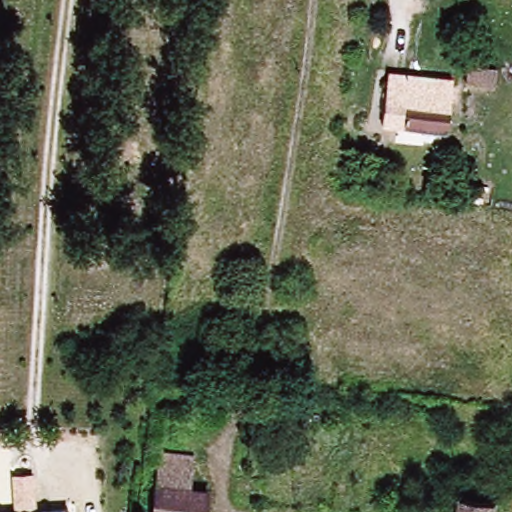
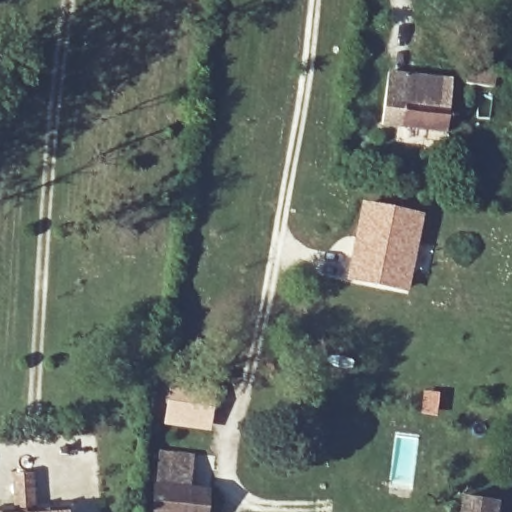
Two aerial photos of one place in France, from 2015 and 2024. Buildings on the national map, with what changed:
unchanged [(470,84),(470,62),(497,66),(495,87),(470,84)]
unchanged [(381,136),(385,66),(450,71),(449,139),(381,136)]
new [(360,200),(425,214),(408,293),(344,281),(360,200)]
unchanged [(201,455),(199,488),(212,489),(212,512),(152,512),(161,453),(201,455)]
unchanged [(496,507),(496,512),(457,512),(457,505),(496,507)]

